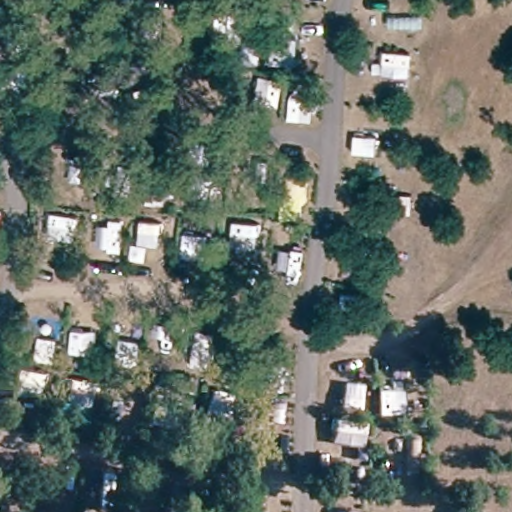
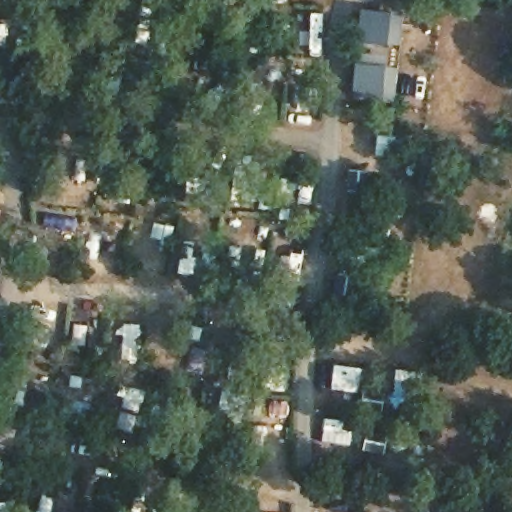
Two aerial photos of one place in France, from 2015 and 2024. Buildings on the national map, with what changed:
new [(405,14),(402,49),(359,45),(363,11),(405,14)]
new [(389,55),(388,66),(400,69),(397,101),(354,96),(357,55),(389,55)]
demolished [(131,210),(175,212),(174,231),(130,227),(131,210)]

